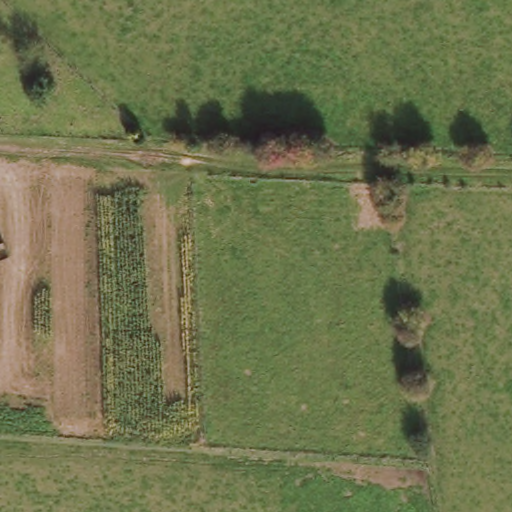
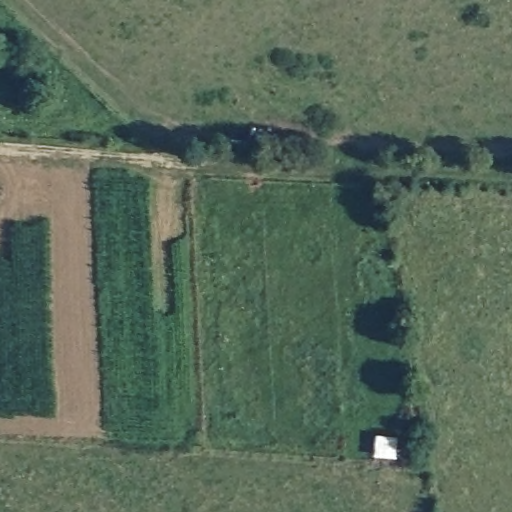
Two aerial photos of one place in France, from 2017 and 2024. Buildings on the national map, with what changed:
[]

